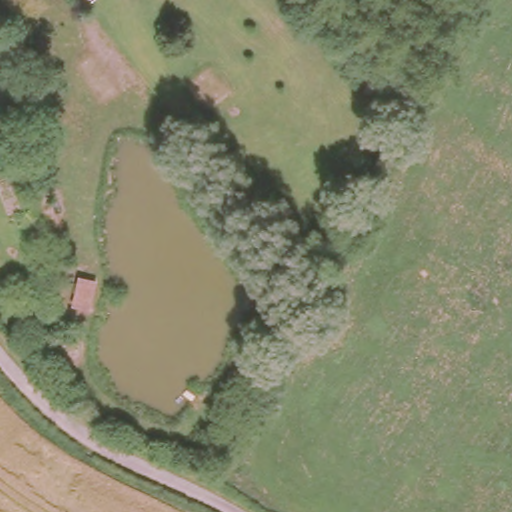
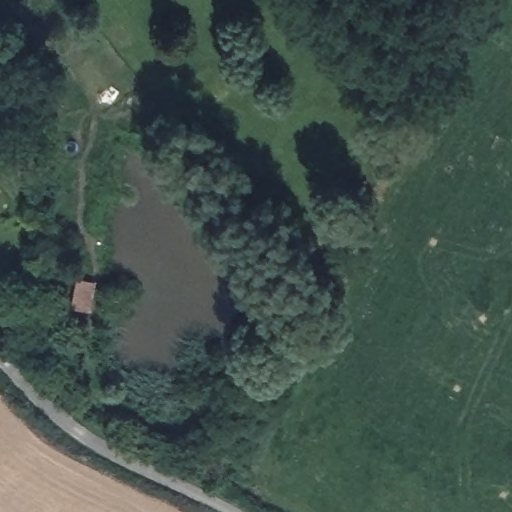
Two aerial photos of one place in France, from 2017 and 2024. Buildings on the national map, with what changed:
unchanged [(97,280),(92,313),(70,308),(76,277),(97,280)]

